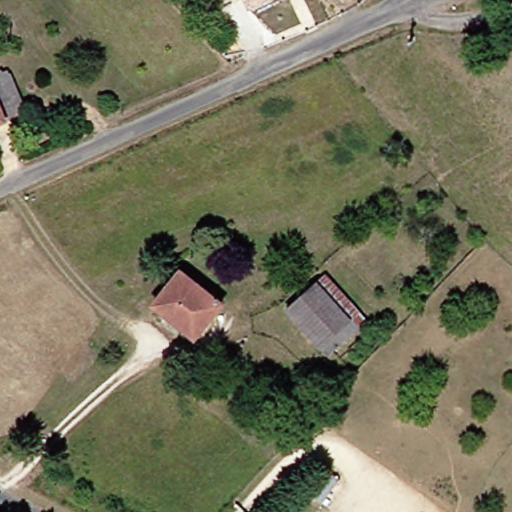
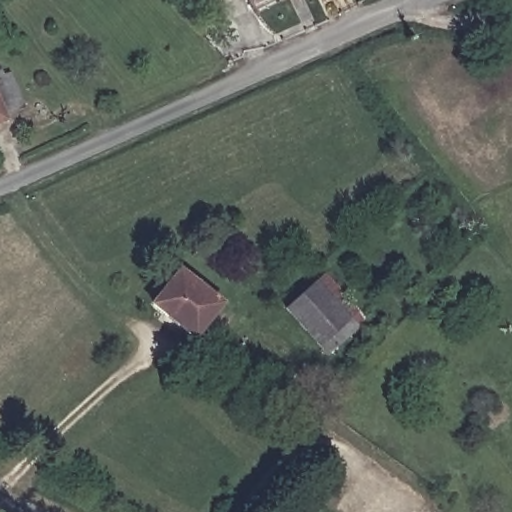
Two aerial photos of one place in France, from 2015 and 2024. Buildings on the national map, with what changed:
unchanged [(264,16),(255,0),(288,0),(289,3),(264,16)]
unchanged [(25,106),(0,117),(0,68),(8,65),(25,106)]
unchanged [(221,298),(192,332),(157,301),(185,270),(221,298)]
unchanged [(329,350),(320,340),(287,302),(320,276),(352,313),(360,323),(329,350)]

